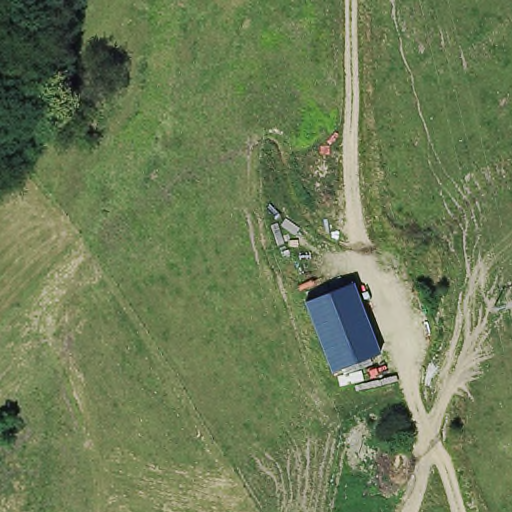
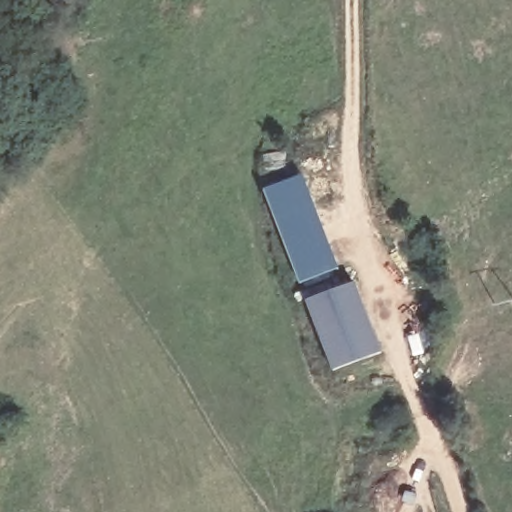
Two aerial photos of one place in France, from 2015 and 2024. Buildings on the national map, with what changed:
new [(287,148),(290,166),(259,175),(256,155),(287,148)]
new [(300,175),(337,268),(300,286),(263,190),(300,175)]
unchanged [(332,372),(305,300),(354,283),(381,353),(332,372)]

